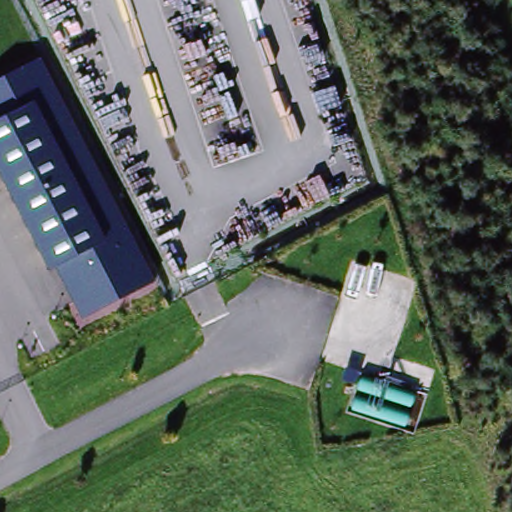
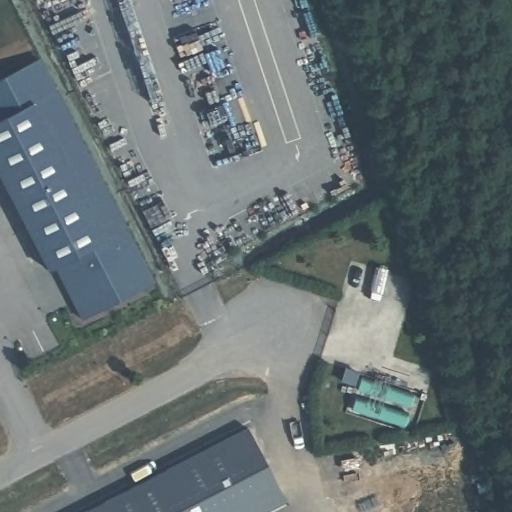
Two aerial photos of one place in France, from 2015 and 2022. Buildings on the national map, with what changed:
unchanged [(80,318),(54,268),(45,273),(0,181),(0,78),(38,59),(154,282),(80,318)]
new [(284,500),(262,512),(87,512),(246,430),(284,500)]

